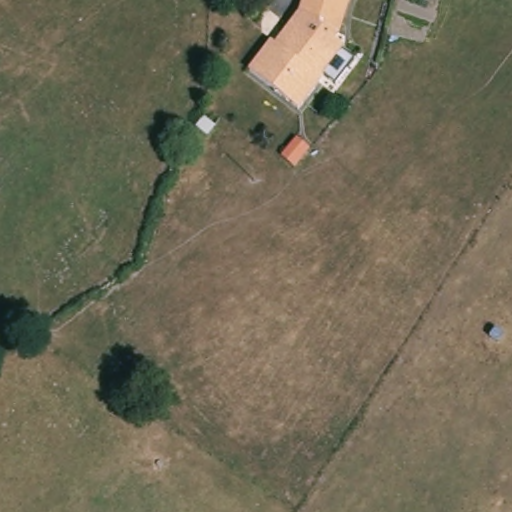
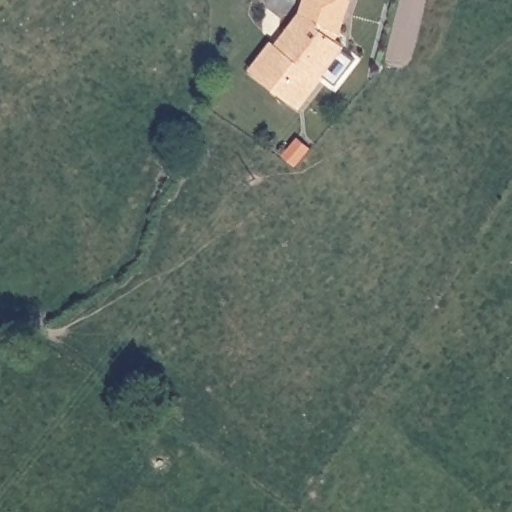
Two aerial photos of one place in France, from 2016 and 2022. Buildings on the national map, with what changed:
unchanged [(307,0),(352,0),(350,12),(345,47),(324,74),(326,75),(300,109),(251,72),(274,43),(282,49),(285,45),(284,37),(302,14),(307,0)]
unchanged [(297,137),(310,149),(295,167),(282,156),(297,137)]

